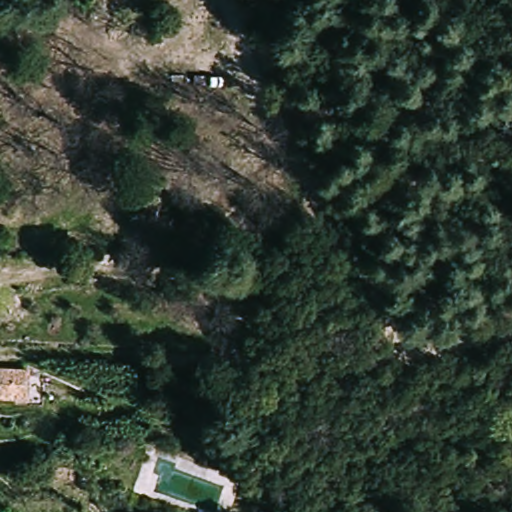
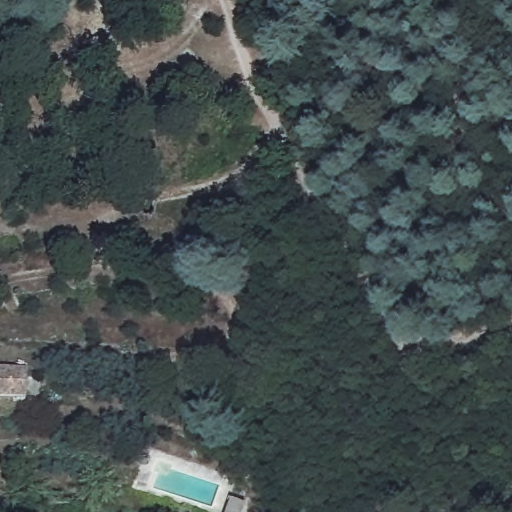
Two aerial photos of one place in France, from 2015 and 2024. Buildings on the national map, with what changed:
unchanged [(0,370),(30,371),(30,399),(0,398),(0,370)]

